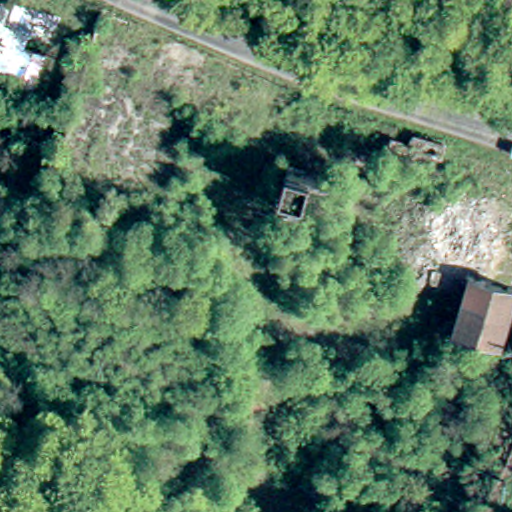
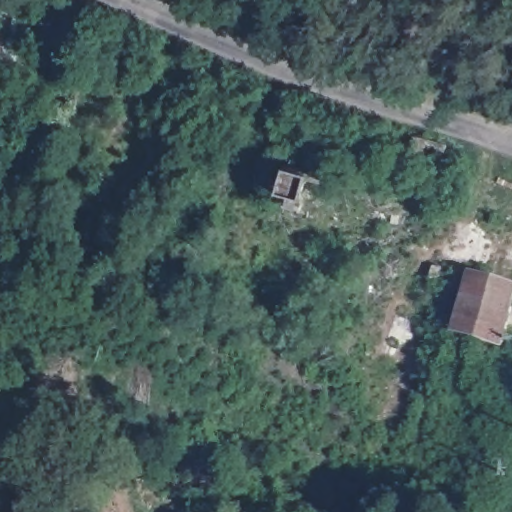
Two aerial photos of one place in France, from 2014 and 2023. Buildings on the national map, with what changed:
unchanged [(512,287),(512,297),(498,341),(457,330),(472,275),(484,278),(493,281),(512,287)]

